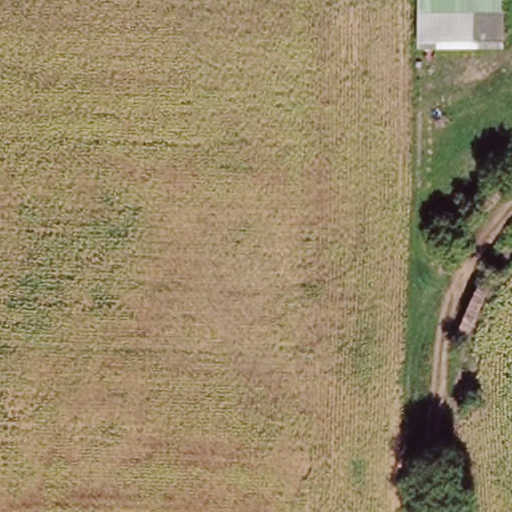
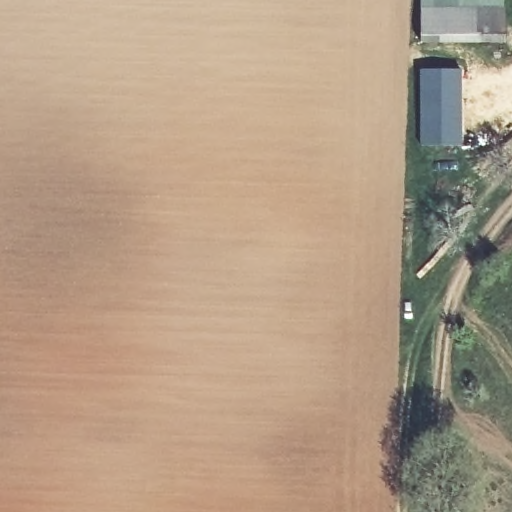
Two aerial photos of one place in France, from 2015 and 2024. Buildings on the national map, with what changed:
unchanged [(502,41),(426,41),(427,0),(502,0),(502,41)]
new [(462,70),(462,145),(421,145),(421,70),(462,70)]

